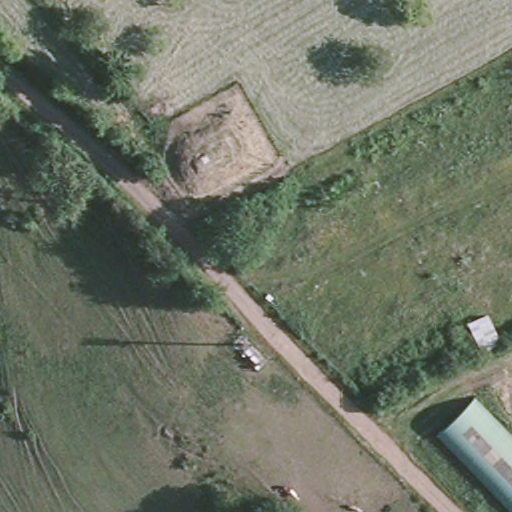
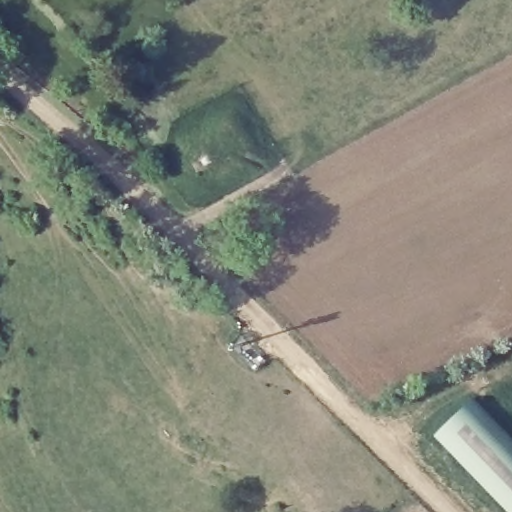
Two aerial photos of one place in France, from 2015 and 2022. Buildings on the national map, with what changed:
unchanged [(438,433),(475,398),(512,437),(512,510),(438,433)]

